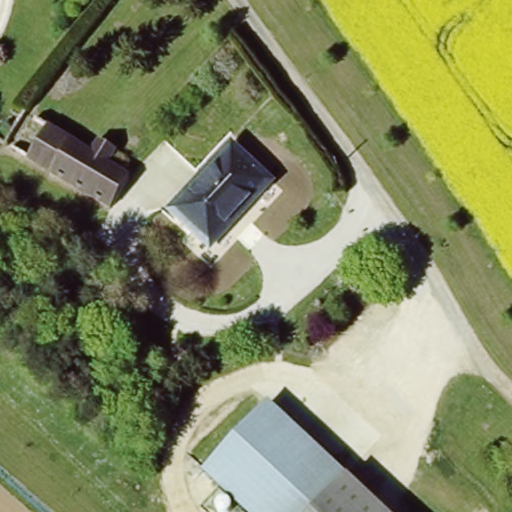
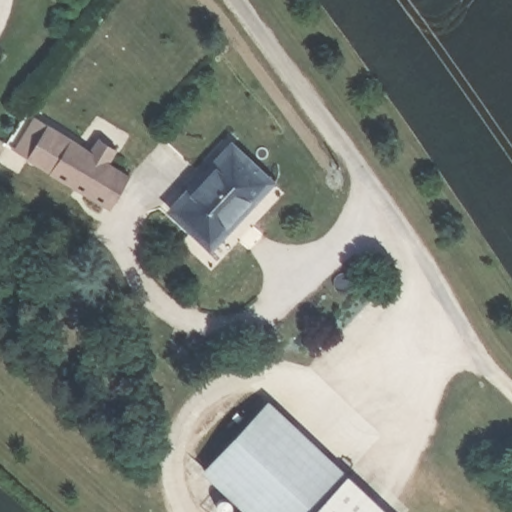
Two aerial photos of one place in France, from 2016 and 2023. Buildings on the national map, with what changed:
unchanged [(1,144),(23,116),(32,102),(57,119),(28,161),(1,144)]
unchanged [(53,177),(28,161),(57,119),(81,135),(53,177)]
unchanged [(105,134),(122,144),(115,156),(139,172),(111,215),(53,177),(81,135),(97,146),(105,134)]
unchanged [(211,252),(176,220),(234,156),(269,187),(211,252)]
unchanged [(313,512),(243,512),(203,475),(268,406),(344,478),(313,512)]
unchanged [(313,512),(344,478),(379,512),(313,512)]

